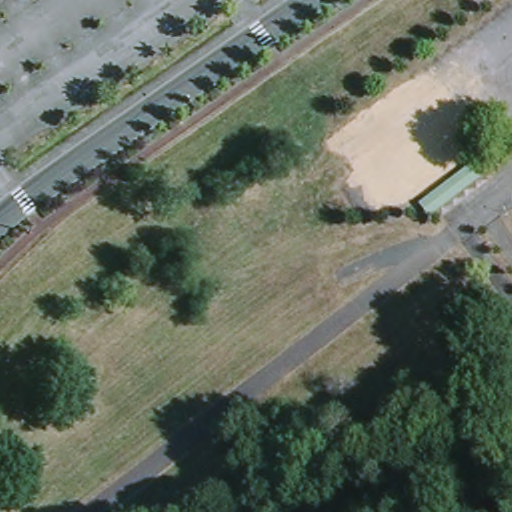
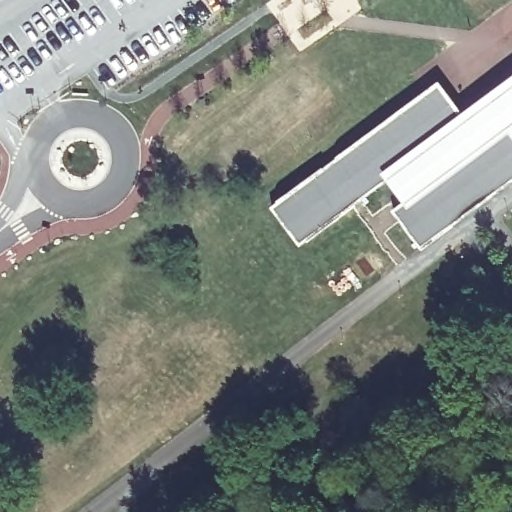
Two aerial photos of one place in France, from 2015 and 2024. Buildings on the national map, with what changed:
new [(395,210),(427,187),(409,162),(302,242),(274,206),(439,84),(466,121),(453,130),(472,154),(512,123),(512,181),(422,247),(395,210)]
demolished [(484,160),(494,173),(432,218),(422,204),(484,160)]

